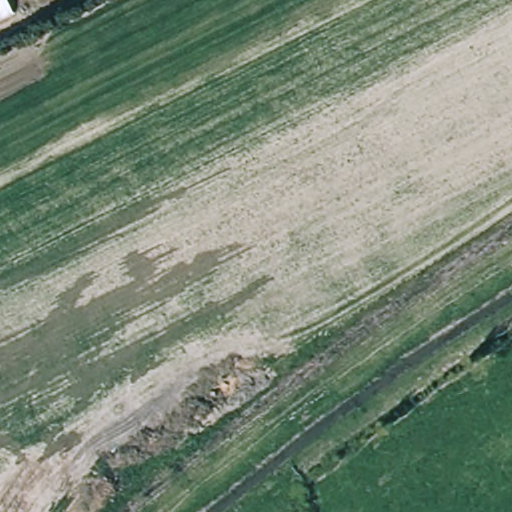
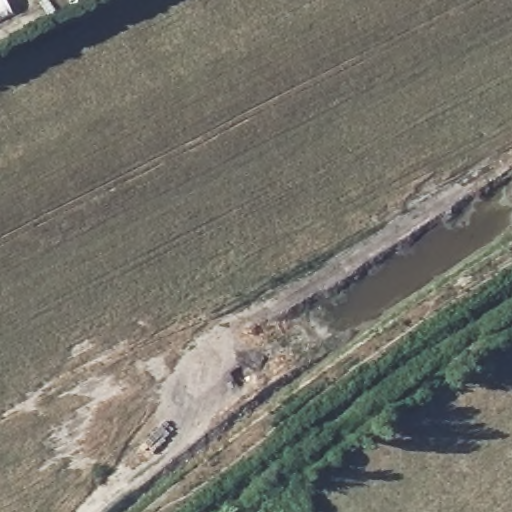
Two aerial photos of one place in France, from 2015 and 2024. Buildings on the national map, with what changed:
unchanged [(10,13),(0,18),(0,0),(4,0),(10,13)]

